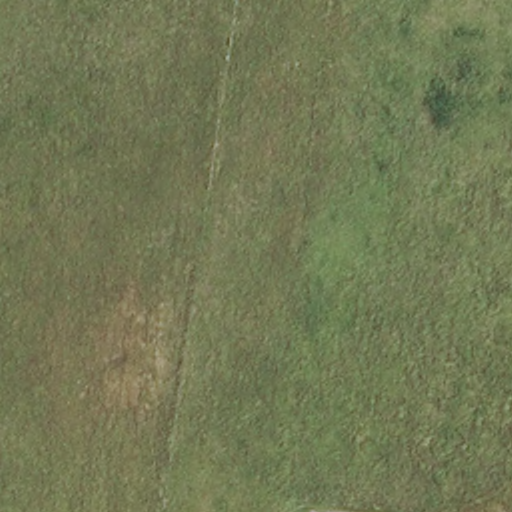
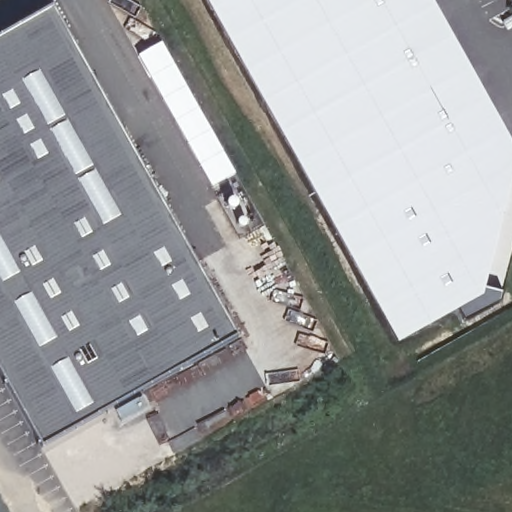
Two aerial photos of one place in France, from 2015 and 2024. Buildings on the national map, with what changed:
new [(433,0),(512,142),(512,189),(486,296),(403,341),(208,0),(433,0)]
new [(236,335),(43,445),(0,368),(0,37),(51,8),(236,335)]
new [(236,176),(213,189),(138,56),(161,44),(236,176)]

